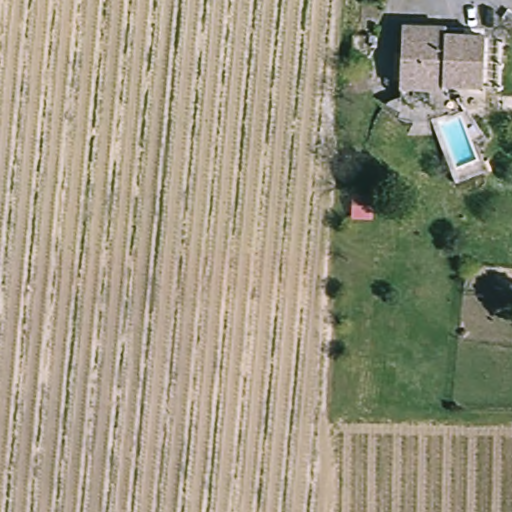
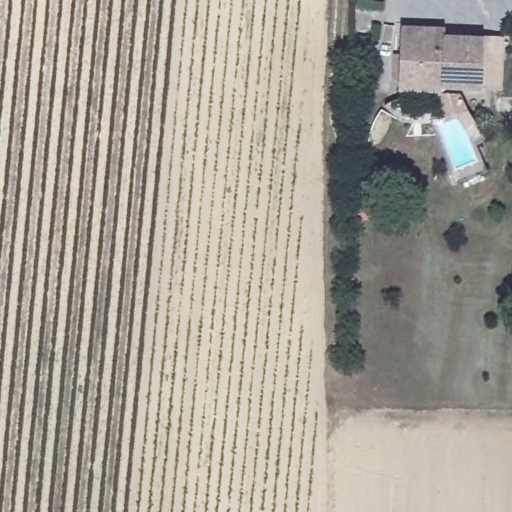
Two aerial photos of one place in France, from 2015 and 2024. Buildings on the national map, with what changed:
unchanged [(402,101),(402,89),(402,38),(402,31),(436,31),(435,38),(482,38),(482,88),(445,89),(444,102),(402,101)]

